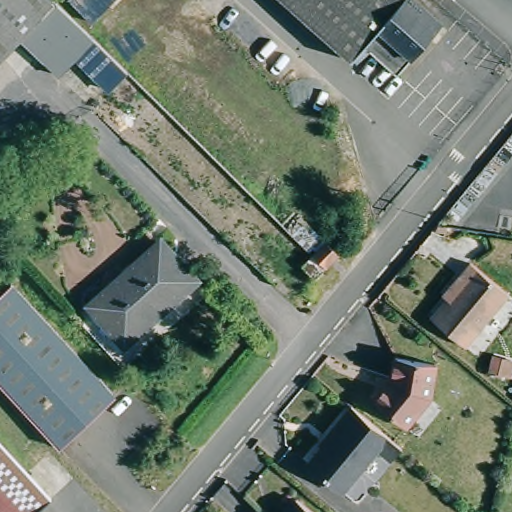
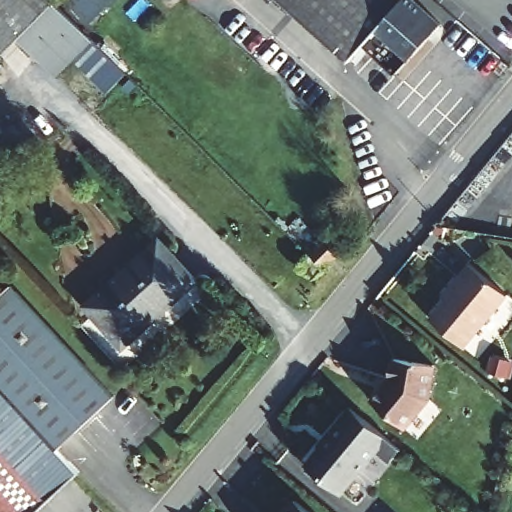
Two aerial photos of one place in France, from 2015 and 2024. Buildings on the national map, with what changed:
unchanged [(93,41),(57,76),(23,43),(0,65),(0,0),(52,0),(59,6),(93,41)]
unchanged [(71,0),(115,0),(94,21),(71,0)]
unchanged [(396,71),(364,43),(350,58),(286,0),(417,0),(441,22),(396,71)]
unchanged [(77,58),(93,41),(126,74),(106,93),(73,61),(77,58)]
unchanged [(93,304),(85,294),(128,253),(133,259),(151,240),(157,234),(206,284),(200,290),(126,359),(85,314),(93,304)]
unchanged [(287,267),(308,254),(325,244),(338,255),(322,267),(301,283),(287,267)]
unchanged [(431,323),(463,284),(459,281),(470,267),(508,298),(465,351),(431,323)]
unchanged [(11,286),(113,398),(59,447),(0,384),(0,296),(11,286)]
unchanged [(395,388),(398,365),(438,371),(432,404),(407,434),(378,409),(395,388)]
new [(59,447),(81,474),(52,501),(0,445),(0,384),(59,447)]
unchanged [(331,438),(329,437),(351,409),(378,432),(401,452),(391,464),(377,453),(341,495),(320,477),(315,477),(309,472),(308,467),(307,466),(331,438)]
unchanged [(52,501),(41,512),(0,512),(0,445),(52,501)]
unchanged [(291,502),(296,502),(309,512),(282,512),(291,502)]

